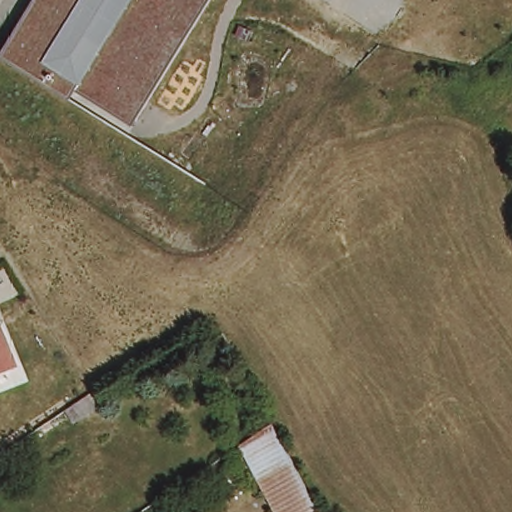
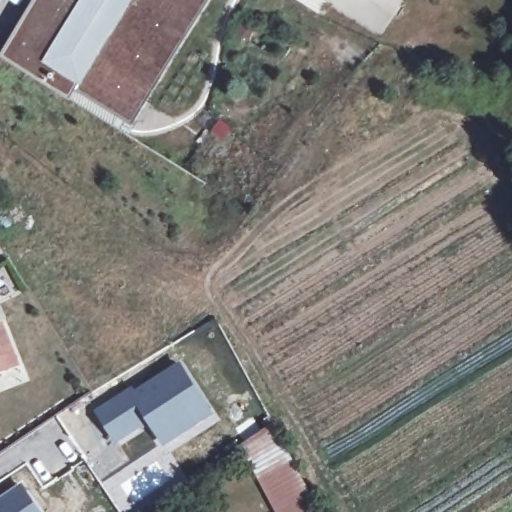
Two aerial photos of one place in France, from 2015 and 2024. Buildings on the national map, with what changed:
unchanged [(80,89),(74,95),(6,56),(40,0),(209,0),(131,120),(80,89)]
unchanged [(4,325),(19,363),(0,370),(0,327),(4,325)]
new [(135,390),(134,388),(180,359),(215,413),(163,447),(148,423),(133,392),(135,390)]
new [(131,385),(134,388),(135,390),(133,392),(148,423),(115,445),(93,409),(131,385)]
unchanged [(322,512),(280,512),(245,445),(275,425),(322,512)]
new [(22,480),(44,512),(0,512),(0,495),(22,480)]

